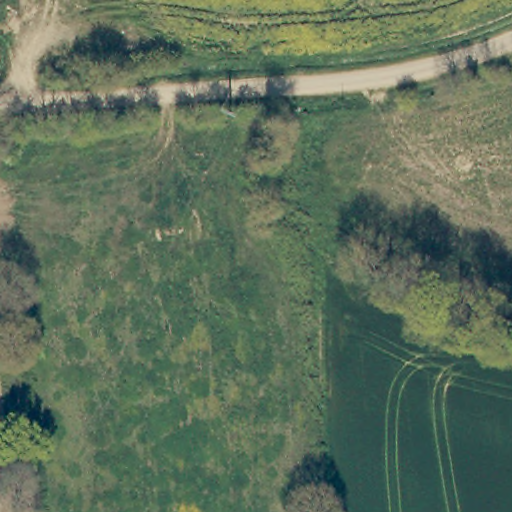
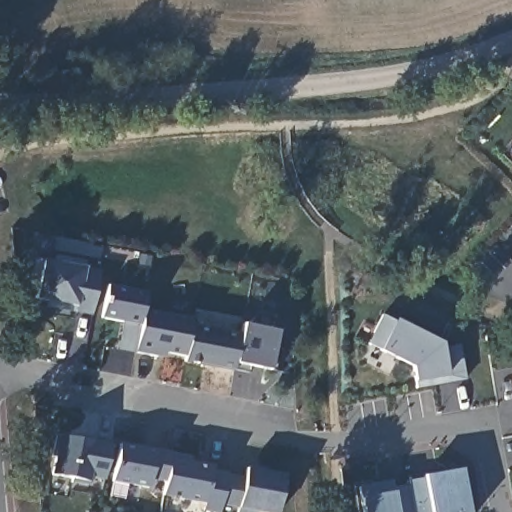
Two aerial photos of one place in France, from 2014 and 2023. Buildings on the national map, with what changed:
new [(91,316),(46,308),(49,301),(35,298),(43,260),(55,261),(55,255),(84,260),(83,266),(99,270),(91,316)]
new [(184,356),(165,353),(165,357),(135,352),(135,353),(118,350),(125,322),(101,318),(108,285),(147,293),(142,308),(193,319),(191,325),(184,356)]
new [(466,378),(416,389),(417,382),(413,382),(410,368),(377,351),(379,347),(368,343),(382,315),(394,320),(442,342),(443,347),(460,345),(466,378)]
new [(238,335),(241,325),(278,331),(272,371),(251,367),(249,373),(232,370),(183,362),(191,325),(238,335)]
new [(106,480),(91,477),(89,485),(74,483),(75,479),(51,475),(54,456),(50,455),(55,433),(111,443),(106,480)]
new [(279,512),(256,512),(237,512),(238,508),(219,505),(220,512),(208,512),(205,511),(206,504),(163,496),(164,482),(148,479),(150,488),(112,481),(119,443),(156,451),(156,449),(194,457),(193,460),(213,465),(211,469),(245,475),(247,466),(286,475),(279,512)]
new [(470,512),(414,512),(409,486),(409,481),(425,476),(462,469),(470,512)]
unchanged [(414,512),(365,512),(362,498),(359,488),(391,481),(392,490),(409,486),(414,512)]

